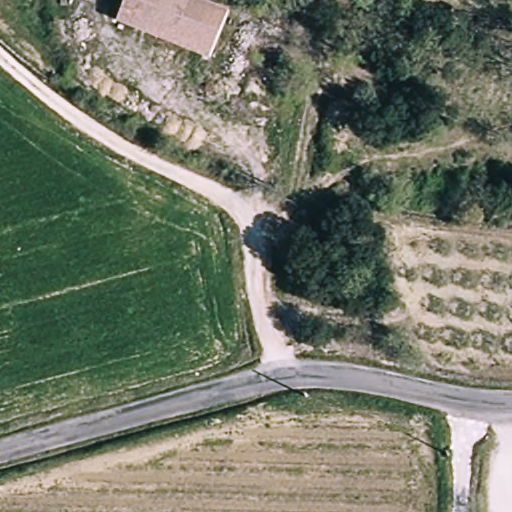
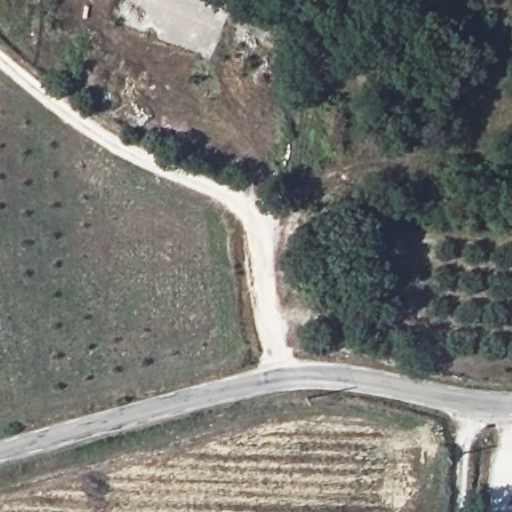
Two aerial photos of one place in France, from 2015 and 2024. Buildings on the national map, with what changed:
demolished [(126,0),(208,0),(234,10),(212,59),(118,20),(126,0)]

